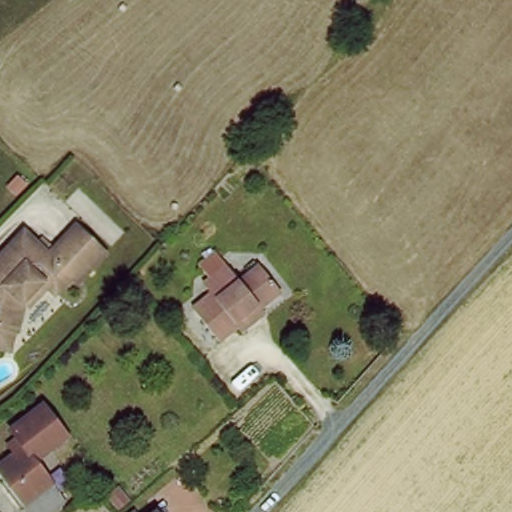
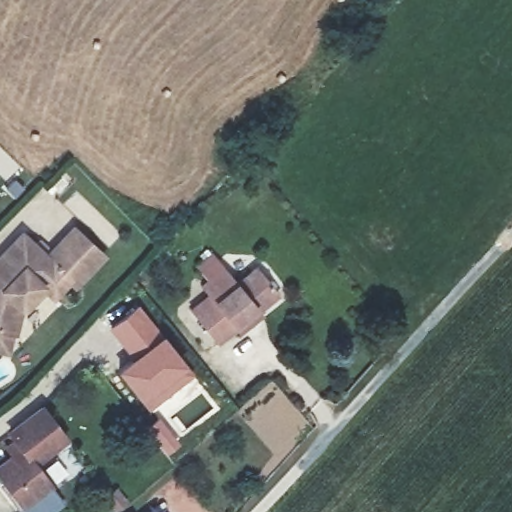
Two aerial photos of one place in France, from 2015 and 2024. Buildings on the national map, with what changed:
unchanged [(54,308),(43,300),(28,316),(15,354),(0,351),(0,258),(25,232),(48,255),(79,227),(111,255),(54,308)]
unchanged [(244,340),(237,330),(216,346),(191,315),(211,297),(203,286),(227,267),(243,286),(262,271),(279,290),(259,306),(269,319),(244,340)]
new [(138,303),(194,372),(146,409),(114,370),(129,356),(107,329),(138,303)]
unchanged [(58,464),(46,474),(57,489),(54,490),(69,507),(63,512),(31,512),(29,510),(25,512),(24,512),(0,478),(0,467),(13,455),(8,446),(13,441),(6,429),(32,406),(35,411),(61,443),(50,453),(58,464)]

